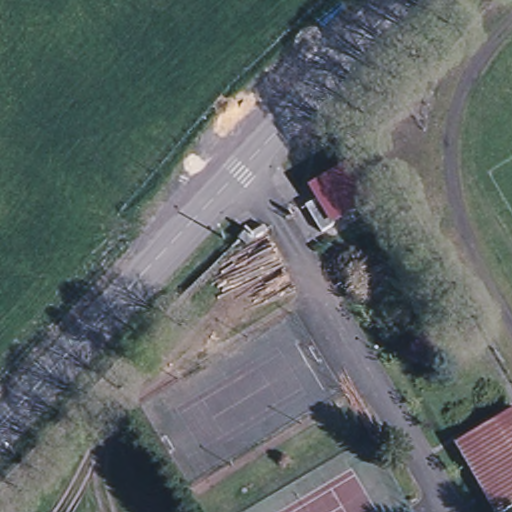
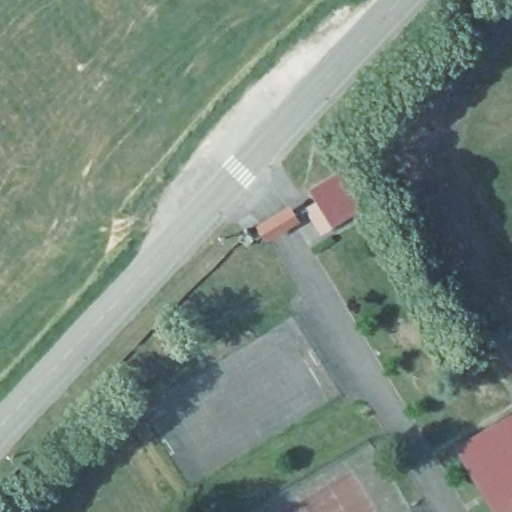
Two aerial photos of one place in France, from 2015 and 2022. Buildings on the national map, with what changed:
unchanged [(305,209),(298,196),(330,176),(350,209),(310,232),(313,238),(298,247),(283,222),(305,209)]
unchanged [(245,241),(248,246),(236,254),(232,249),(245,241)]
unchanged [(494,426),(512,415),(512,457),(494,426)]
unchanged [(494,426),(512,457),(512,512),(490,512),(455,449),(494,426)]

